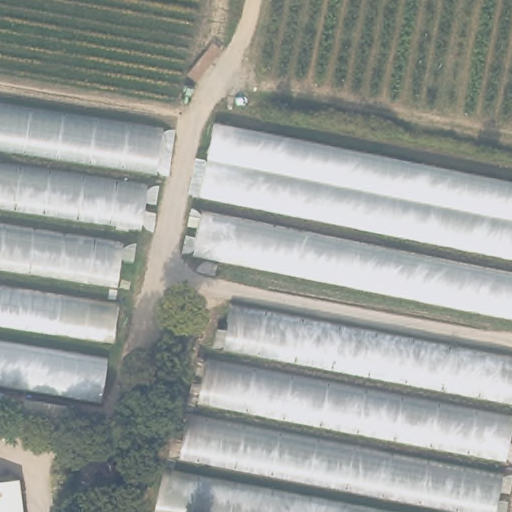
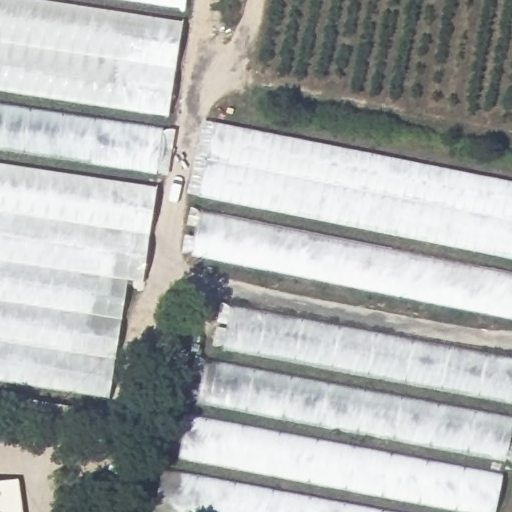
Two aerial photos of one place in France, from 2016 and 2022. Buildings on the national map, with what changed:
new [(0,0),(42,0),(184,21),(169,117),(0,90),(0,0)]
unchanged [(154,237),(142,233),(125,349),(113,347),(105,406),(0,390),(0,105),(174,134),(154,237)]
unchanged [(195,255),(206,198),(198,198),(214,121),(512,182),(512,317),(195,255)]
unchanged [(512,360),(512,495),(509,512),(155,512),(152,512),(174,429),(182,427),(190,380),(200,379),(207,345),(216,345),(223,307),(512,360)]
unchanged [(35,512),(0,512),(0,486),(33,483),(35,512)]

